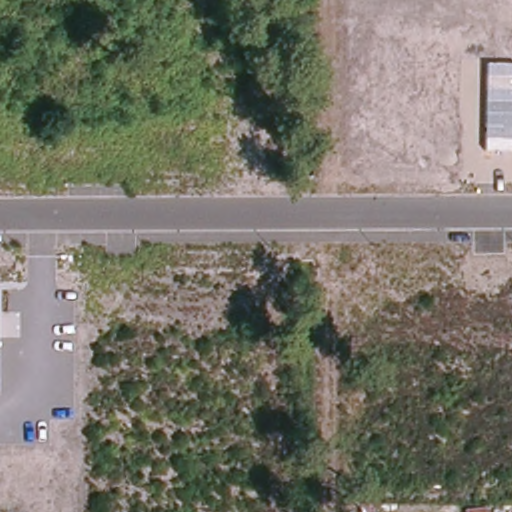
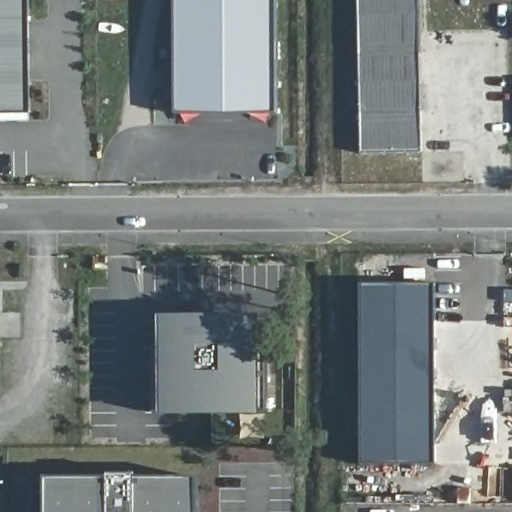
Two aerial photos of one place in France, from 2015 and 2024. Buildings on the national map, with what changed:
new [(0,116),(0,0),(31,0),(32,116),(0,116)]
new [(176,115),(176,0),(278,0),(278,116),(176,115)]
new [(360,0),(419,0),(423,153),(363,153),(360,0)]
new [(363,464),(365,283),(435,284),(436,465),(363,464)]
new [(253,322),(254,347),(269,347),(270,414),(170,415),(170,348),(170,323),(253,322)]
new [(155,348),(170,348),(170,415),(155,415),(155,348)]
new [(47,481),(110,481),(110,476),(139,477),(139,481),(200,481),(200,512),(47,512),(47,481)]

